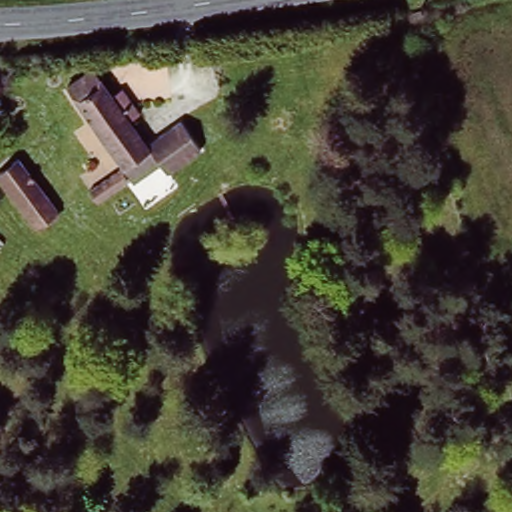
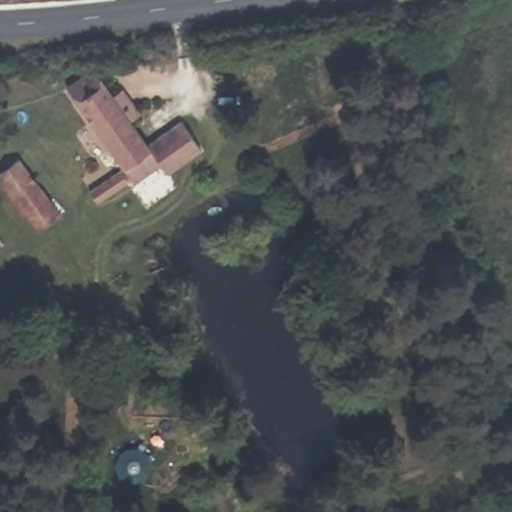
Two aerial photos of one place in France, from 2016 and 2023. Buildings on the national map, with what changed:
unchanged [(131,178),(95,202),(85,187),(117,167),(57,75),(82,58),(107,94),(119,86),(135,112),(124,120),(143,149),(121,164),(131,178)]
unchanged [(121,164),(143,149),(182,123),(198,148),(165,172),(162,167),(135,185),(131,178),(121,164)]
unchanged [(0,166),(16,154),(55,201),(30,221),(0,184),(0,166)]

